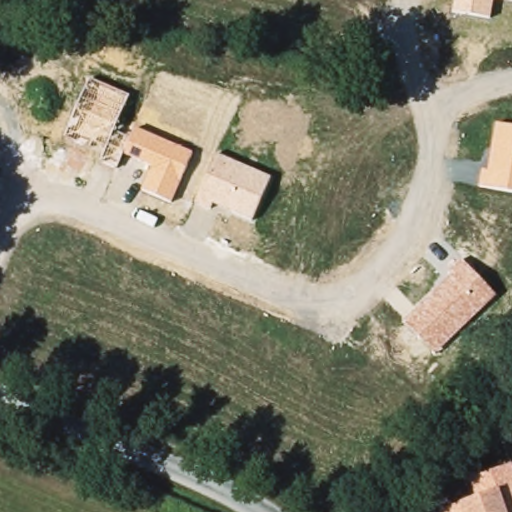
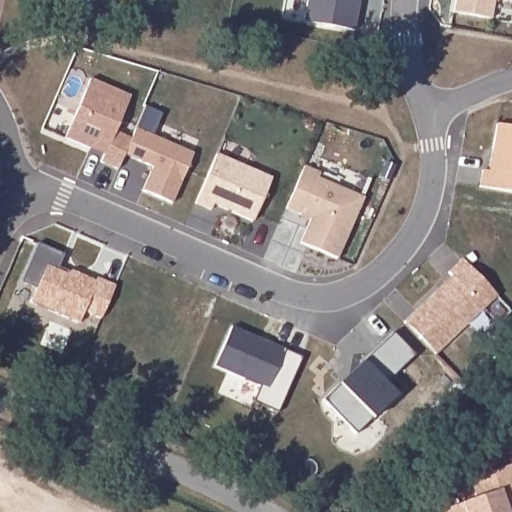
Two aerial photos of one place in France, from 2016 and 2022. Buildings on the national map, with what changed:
new [(307,0),(359,0),(354,31),(304,22),(307,0)]
unchanged [(490,19),(453,13),(456,0),(494,0),(490,19)]
unchanged [(512,2),(500,0),(512,0),(512,2)]
unchanged [(173,204),(142,192),(152,168),(124,155),(118,170),(101,162),(104,156),(65,139),(90,81),(129,97),(115,132),(130,139),(134,129),(195,155),(173,204)]
unchanged [(483,172),(488,172),(496,126),(512,128),(512,193),(481,187),(483,172)]
unchanged [(254,222),(214,205),(211,210),(196,204),(216,155),(271,178),(254,222)]
new [(286,208),(304,166),(320,173),(318,178),(364,198),(337,259),(301,243),(311,219),(301,215),(286,208)]
new [(30,302),(36,286),(22,280),(38,244),(62,255),(58,265),(94,280),(96,277),(115,284),(101,319),(84,311),(79,323),(30,302)]
unchanged [(436,354),(404,323),(451,278),(448,275),(463,262),(497,297),(436,354)]
new [(362,362),(393,332),(415,355),(385,385),(396,396),(356,435),(323,400),(340,383),(362,362)]
unchanged [(477,498),(470,479),(512,464),(512,512),(442,512),(441,511),(477,498)]

